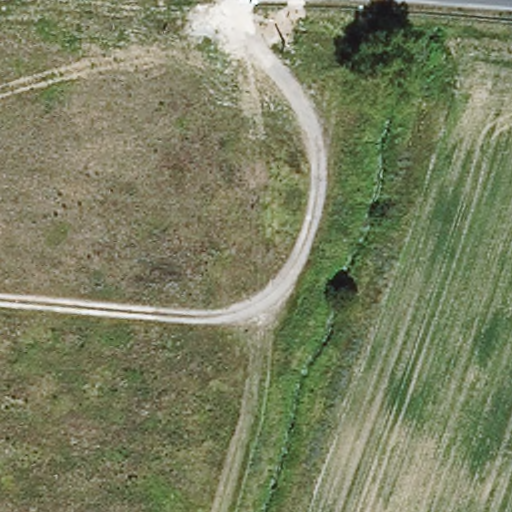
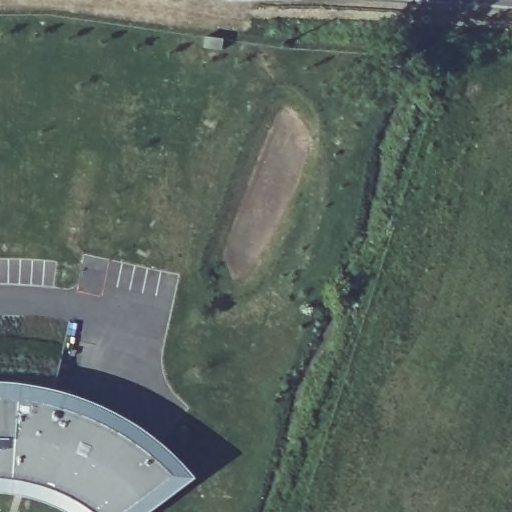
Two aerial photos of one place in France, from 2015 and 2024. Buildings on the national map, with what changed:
new [(40,355),(39,385),(48,387),(74,396),(104,409),(122,420),(146,440),(84,505),(76,500),(54,489),(36,481),(9,474),(0,474),(0,354),(40,355)]
new [(9,474),(36,481),(54,489),(76,500),(84,505),(146,440),(177,463),(118,512),(64,512),(59,508),(43,500),(18,492),(0,489),(0,474),(9,474)]

